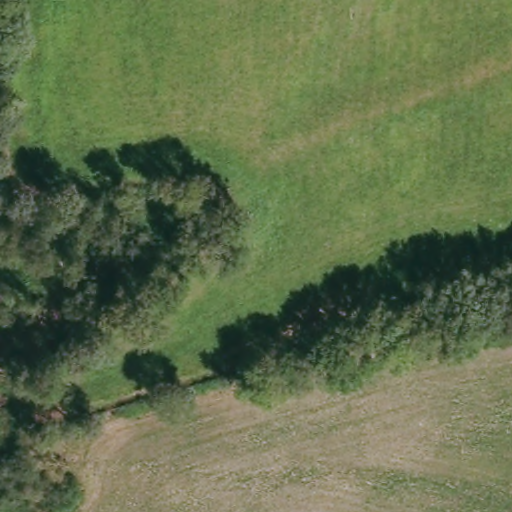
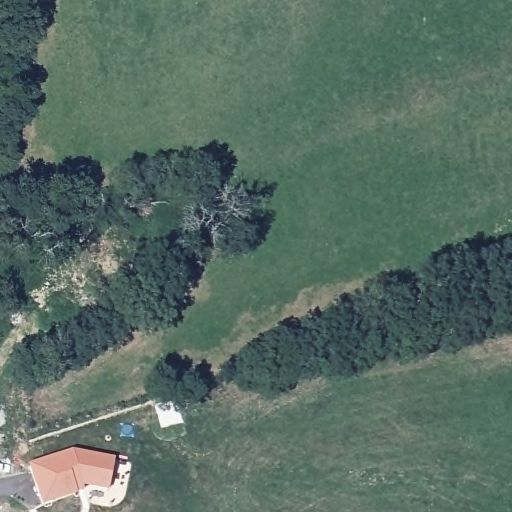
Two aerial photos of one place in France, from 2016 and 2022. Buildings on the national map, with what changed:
new [(72,450),(115,458),(109,493),(83,487),(84,492),(77,495),(42,507),(28,466),(72,450)]

